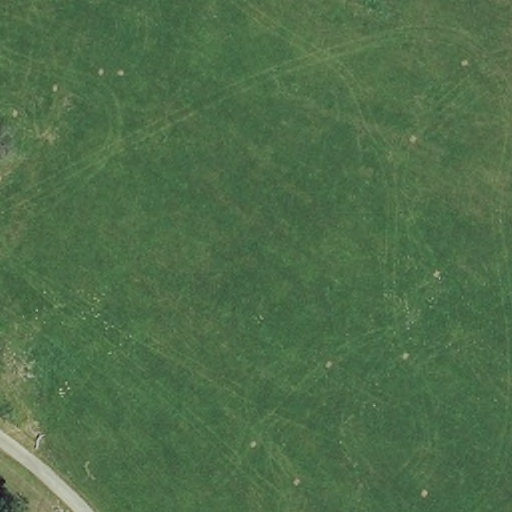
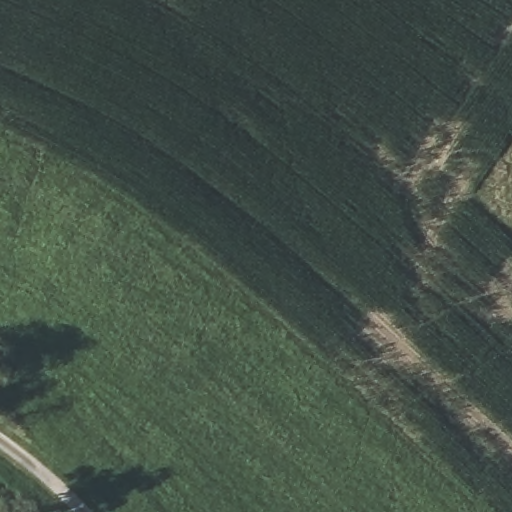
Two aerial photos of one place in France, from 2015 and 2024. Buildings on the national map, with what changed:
[]

